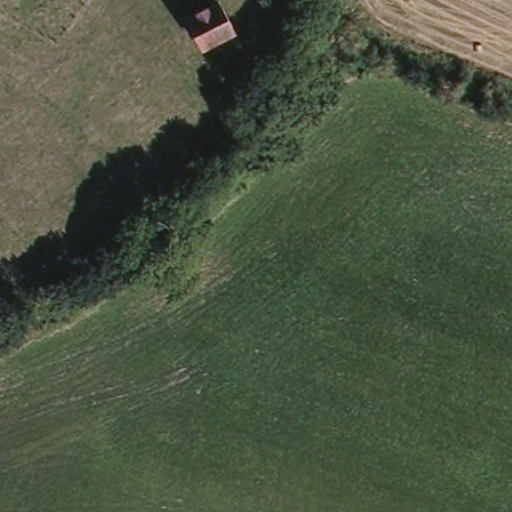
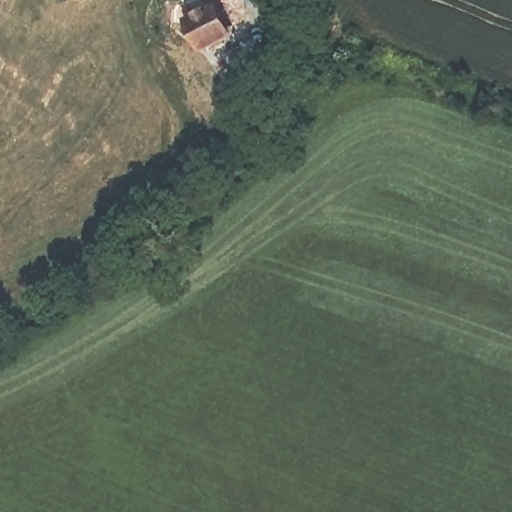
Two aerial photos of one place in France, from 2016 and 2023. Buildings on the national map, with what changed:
unchanged [(227,3),(239,32),(209,45),(196,18),(227,3)]

